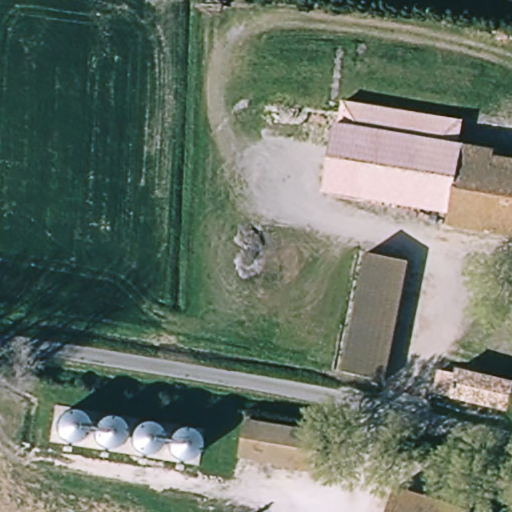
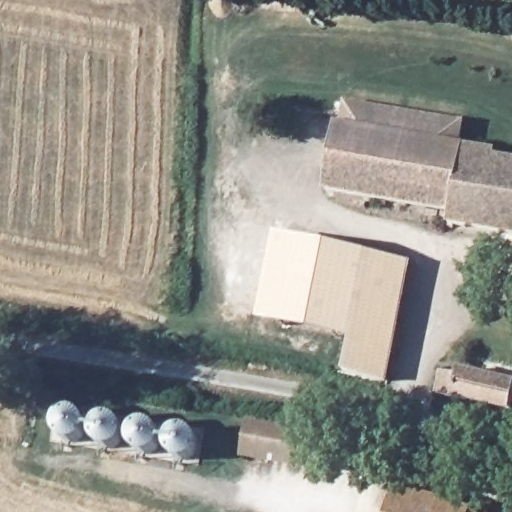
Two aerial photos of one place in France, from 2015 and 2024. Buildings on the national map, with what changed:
unchanged [(449,226),(452,212),(326,192),(338,126),(343,126),(346,101),(463,119),(460,145),(499,151),(497,160),(512,162),(512,237),(449,226)]
new [(353,341),(259,322),(275,234),(369,253),(353,341)]
unchanged [(347,371),(369,253),(410,262),(389,380),(347,371)]
unchanged [(511,412),(437,395),(442,376),(458,380),(460,374),(512,386),(512,409),(511,412)]
unchanged [(59,414),(63,410),(68,406),(78,406),(84,410),(88,418),(88,426),(84,433),(79,436),(73,438),(68,437),(61,433),(58,426),(58,419),(59,414)]
unchanged [(98,418),(104,414),(110,413),(116,414),(121,417),(124,422),(126,430),(124,436),(120,440),(115,444),(106,444),(98,440),(94,433),(94,425),(98,418)]
unchanged [(321,434),(314,472),(236,457),(243,419),(321,434)]
unchanged [(133,428),(137,423),(143,420),(151,420),(158,424),(162,430),(162,441),(158,447),(152,451),(144,451),(137,448),(133,443),(131,440),(131,433),(133,428)]
unchanged [(168,438),(172,431),(178,427),(188,427),(193,429),(198,435),(199,438),(199,444),(198,450),(195,454),(188,458),(180,458),(174,455),(170,451),(168,445),(168,440),(168,438)]
unchanged [(463,512),(393,512),(399,492),(463,512)]

